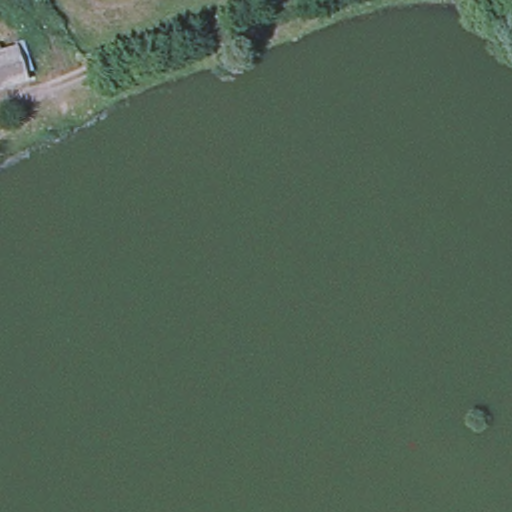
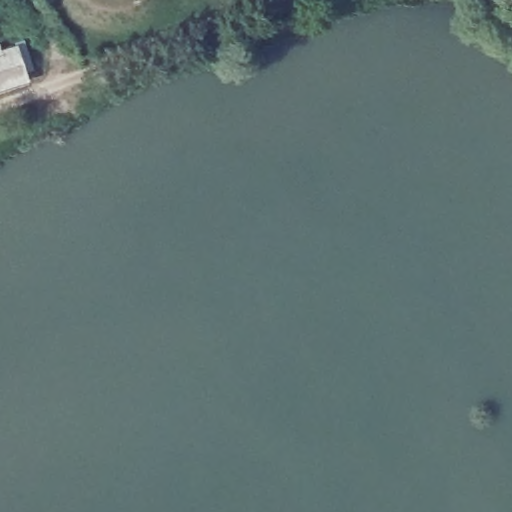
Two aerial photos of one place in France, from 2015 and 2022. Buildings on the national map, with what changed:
unchanged [(27,81),(0,89),(0,47),(1,47),(4,55),(18,51),(25,74),(27,81)]

